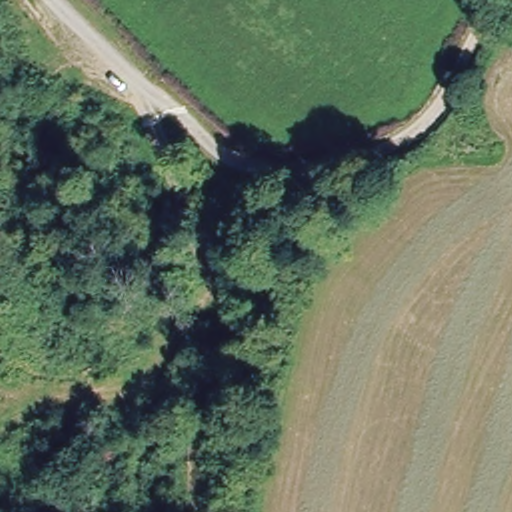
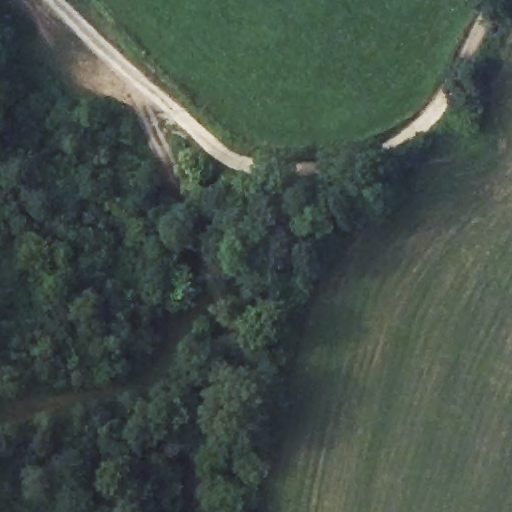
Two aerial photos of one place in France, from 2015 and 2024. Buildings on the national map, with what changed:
[]

